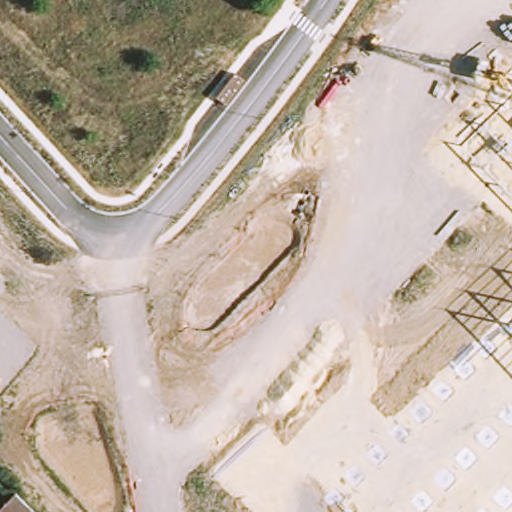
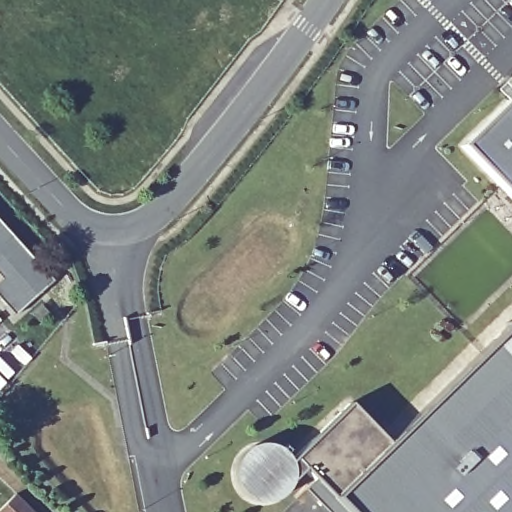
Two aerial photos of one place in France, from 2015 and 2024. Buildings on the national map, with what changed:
new [(512,95),(512,200),(459,147),(512,95)]
new [(0,299),(0,280),(2,278),(0,276),(0,223),(52,280),(15,315),(0,299)]
new [(345,512),(330,497),(388,441),(512,320),(512,512),(345,512)]
new [(351,403),(388,441),(330,497),(300,466),(290,476),(289,463),(351,403)]
unchanged [(36,512),(0,512),(0,508),(15,491),(36,512)]

